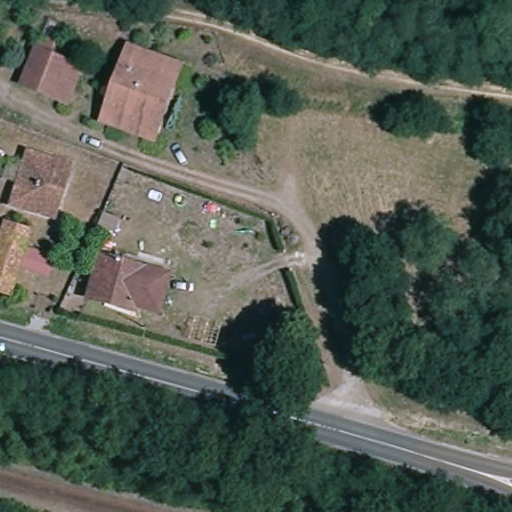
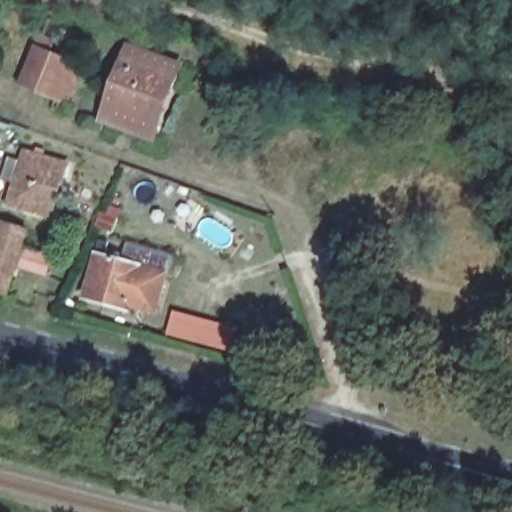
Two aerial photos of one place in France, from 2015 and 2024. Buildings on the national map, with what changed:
unchanged [(16,85),(32,45),(37,46),(41,34),(59,40),(55,55),(86,67),(67,106),(16,85)]
unchanged [(102,118),(138,50),(181,75),(149,142),(102,118)]
unchanged [(6,195),(27,152),(74,172),(51,221),(6,195)]
unchanged [(32,229),(0,290),(0,240),(11,218),(32,229)]
unchanged [(101,247),(163,282),(154,307),(132,294),(123,308),(86,284),(101,247)]
new [(167,335),(174,311),(229,325),(222,350),(167,335)]

